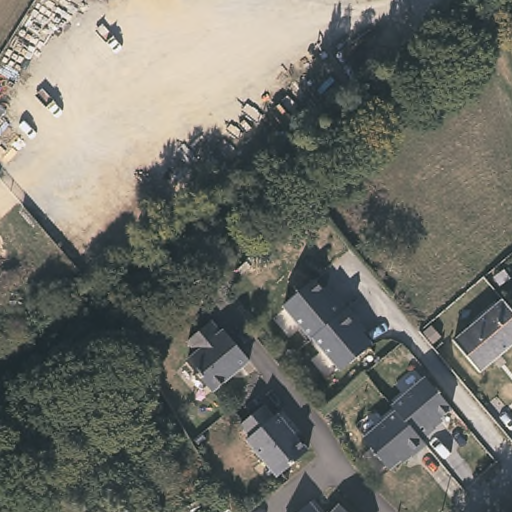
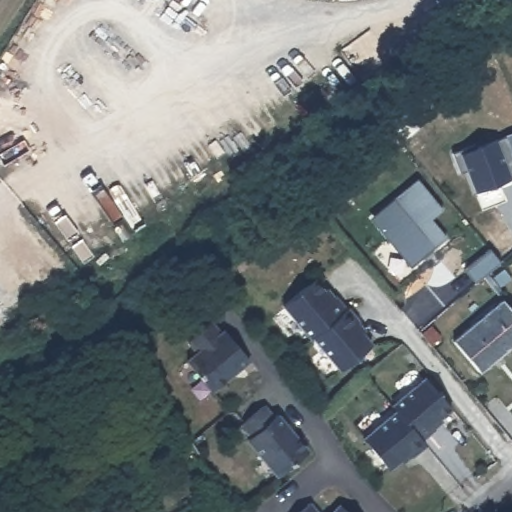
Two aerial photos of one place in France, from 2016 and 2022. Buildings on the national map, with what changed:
new [(509,172),(511,177),(476,190),(468,166),(459,169),(454,156),(507,137),(506,134),(512,132),(512,171),(509,172)]
demolished [(398,154),(383,166),(364,145),(379,133),(398,154)]
new [(417,177),(443,207),(431,218),(446,235),(411,266),(369,217),(417,177)]
unchanged [(329,297),(332,295),(342,307),(344,305),(358,320),(353,324),(369,343),(338,368),(314,340),(306,340),(280,308),(313,280),(329,297)]
unchanged [(512,302),(512,341),(483,367),(457,337),(507,296),(512,302)]
unchanged [(220,331),(223,328),(251,358),(214,390),(187,361),(198,352),(187,340),(210,319),(220,331)]
unchanged [(449,405),(428,423),(434,430),(421,441),(427,447),(412,460),(407,456),(390,470),(361,436),(395,409),(391,403),(424,376),(449,405)]
unchanged [(274,411),(305,447),(275,474),(244,438),(248,435),(237,421),(254,408),(259,403),(265,409),(269,415),(274,411)]
unchanged [(294,512),(308,502),(315,512),(294,512)]
unchanged [(344,512),(331,512),(337,505),(344,512)]

